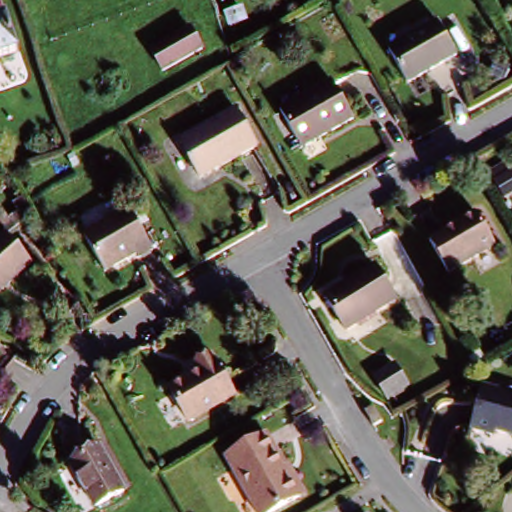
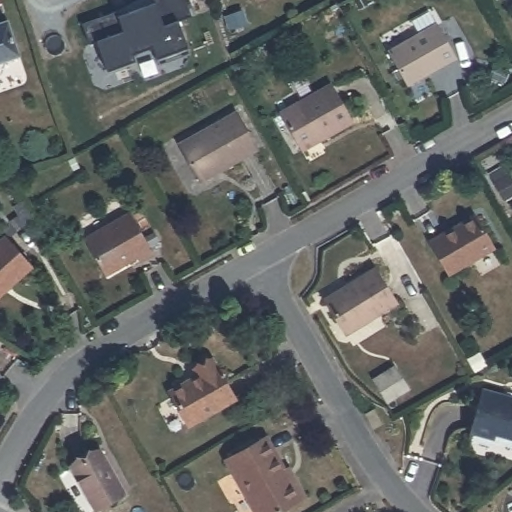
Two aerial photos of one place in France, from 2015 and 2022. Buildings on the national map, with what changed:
new [(175,20),(186,48),(157,58),(153,46),(133,53),(135,60),(108,70),(96,40),(90,43),(83,22),(115,10),(132,0),(184,0),(190,16),(175,20)]
unchanged [(5,21),(16,51),(0,57),(0,23),(5,21)]
unchanged [(436,24),(453,56),(401,85),(385,50),(436,24)]
demolished [(155,55),(195,28),(210,54),(170,78),(155,55)]
unchanged [(330,86),(351,125),(299,155),(278,116),(330,86)]
unchanged [(235,113),(256,151),(198,184),(178,145),(235,113)]
unchanged [(125,212),(151,251),(139,259),(135,256),(105,275),(80,240),(125,212)]
unchanged [(480,218),(498,250),(449,279),(430,245),(480,218)]
unchanged [(2,238),(32,265),(0,298),(0,240),(2,238)]
unchanged [(372,270),(393,305),(342,334),(321,300),(372,270)]
unchanged [(203,378),(197,370),(216,362),(237,401),(191,427),(172,395),(203,378)]
unchanged [(380,387),(363,397),(350,376),(367,365),(380,387)]
unchanged [(503,400),(512,403),(512,445),(491,438),(490,443),(470,436),(483,394),(503,400)]
unchanged [(360,420),(351,425),(342,410),(351,405),(360,420)]
unchanged [(266,444),(300,505),(286,512),(249,512),(223,467),(266,444)]
unchanged [(94,450),(119,495),(90,512),(65,466),(94,450)]

